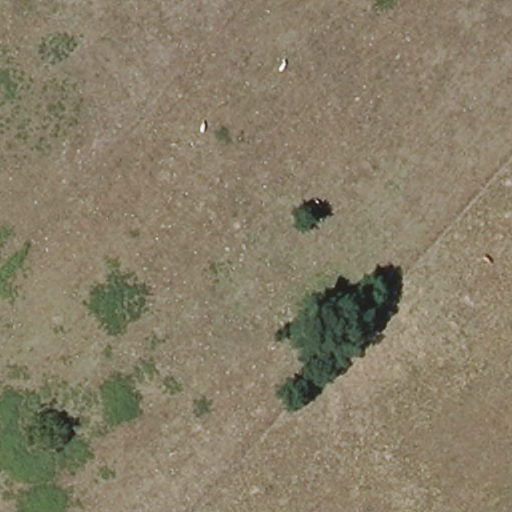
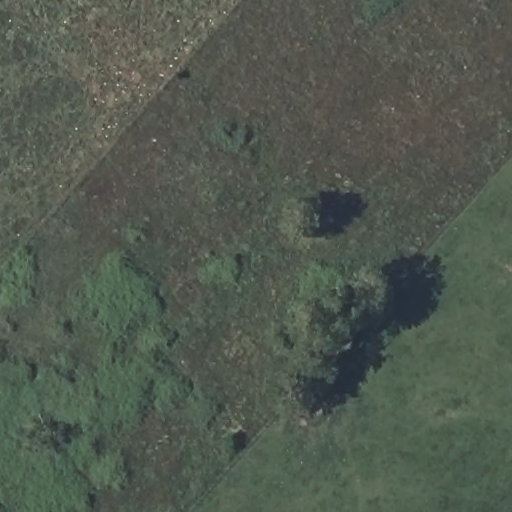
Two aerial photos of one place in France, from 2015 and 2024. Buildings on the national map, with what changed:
[]

